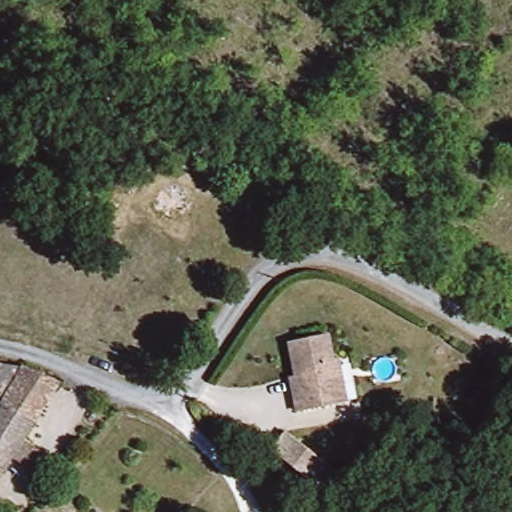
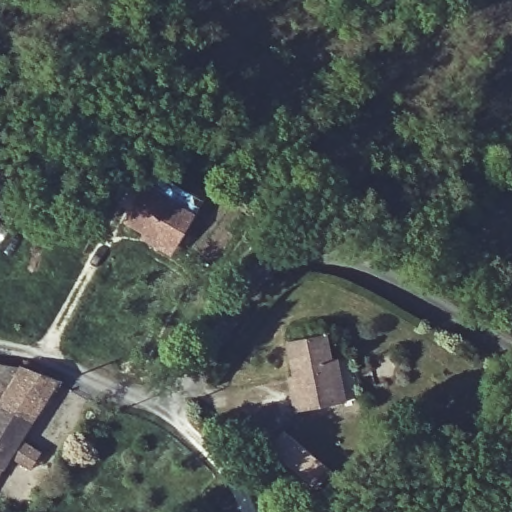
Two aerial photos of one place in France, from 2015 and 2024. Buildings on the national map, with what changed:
new [(197,214),(173,255),(143,238),(144,235),(124,223),(146,185),(197,214)]
unchanged [(294,412),(292,399),(298,398),(284,338),(330,328),(347,399),(294,412)]
unchanged [(3,393),(0,391),(0,360),(62,374),(26,433),(44,444),(32,464),(13,452),(0,473),(0,397),(3,393)]
unchanged [(332,464),(321,483),(275,458),(287,438),(332,464)]

